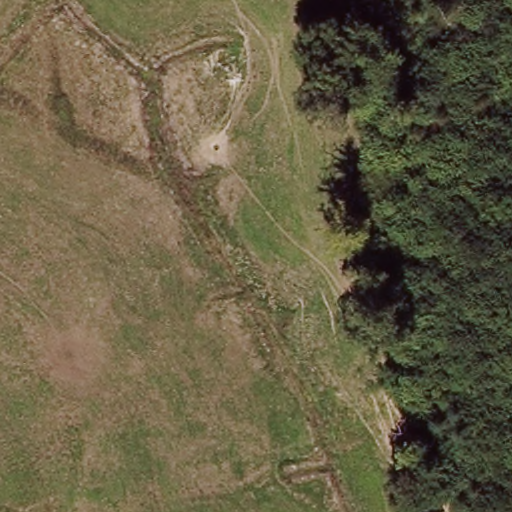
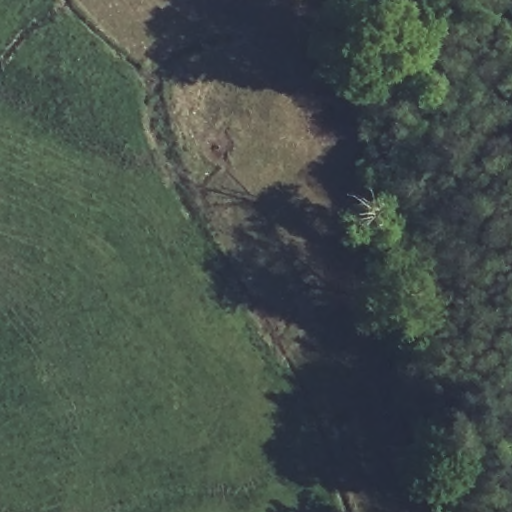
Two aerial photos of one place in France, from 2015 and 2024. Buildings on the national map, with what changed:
[]

